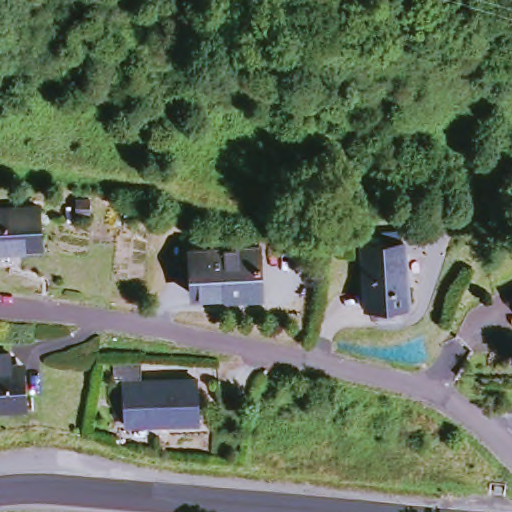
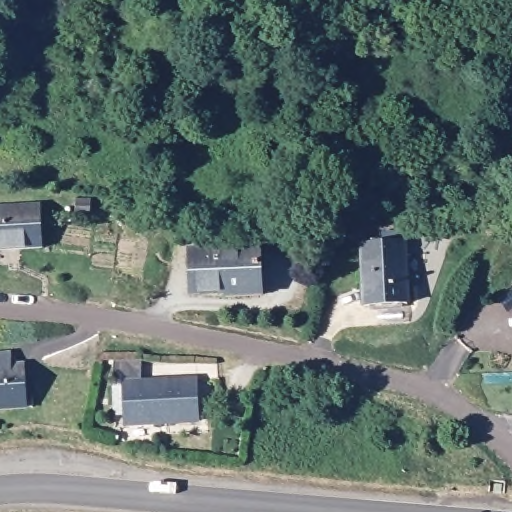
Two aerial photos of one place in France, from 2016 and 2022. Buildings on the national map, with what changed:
unchanged [(35,246),(0,249),(0,206),(31,203),(35,246)]
unchanged [(399,307),(361,308),(358,245),(398,242),(399,307)]
unchanged [(256,293),(220,297),(219,290),(187,293),(182,250),(251,244),(256,293)]
unchanged [(165,423),(163,414),(126,417),(122,382),(110,382),(110,363),(137,360),(139,382),(194,379),(197,417),(165,423)]
unchanged [(0,411),(0,362),(1,374),(16,375),(18,410),(0,411)]

